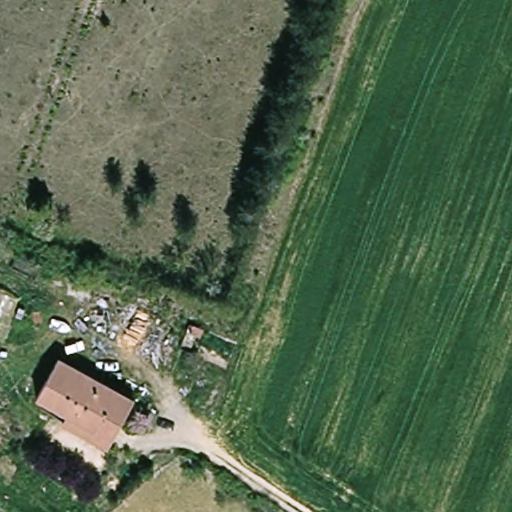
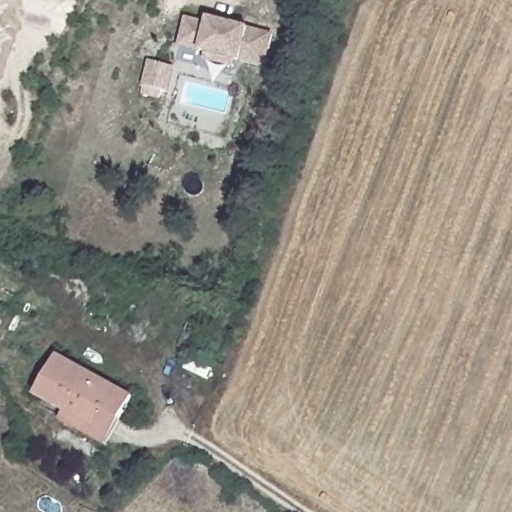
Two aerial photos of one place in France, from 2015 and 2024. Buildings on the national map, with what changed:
new [(206,22),(208,17),(249,28),(274,35),(267,68),(241,62),(235,60),(233,66),(204,60),(206,53),(200,51),(178,46),(185,17),(206,22)]
new [(169,92),(143,86),(149,61),(175,68),(169,92)]
unchanged [(65,426),(73,409),(41,394),(49,379),(61,356),(139,393),(128,416),(124,424),(113,448),(65,426)]

